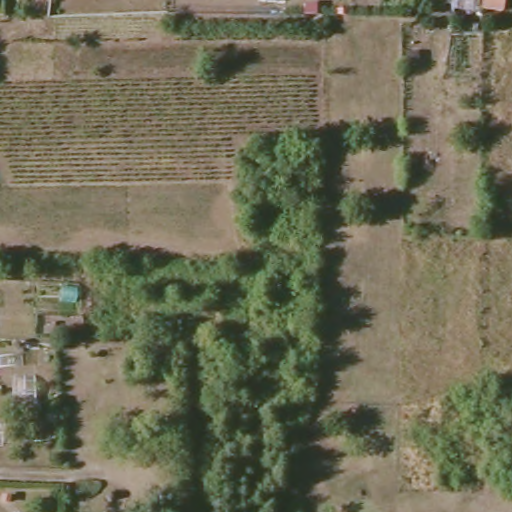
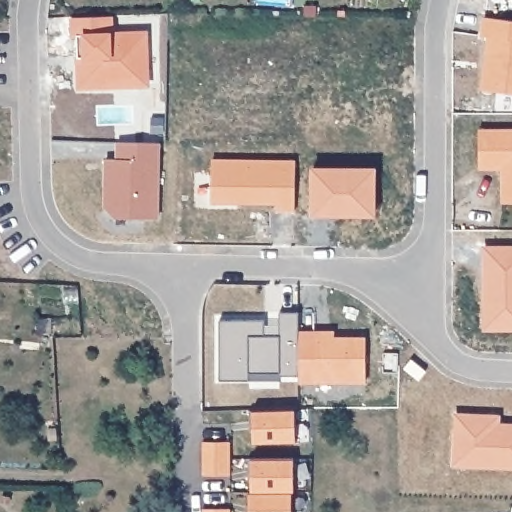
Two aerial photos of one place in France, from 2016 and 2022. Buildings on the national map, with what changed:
demolished [(505,18),(453,14),(454,0),(505,0),(505,18)]
new [(115,85),(79,85),(78,34),(74,34),(74,15),(113,15),(113,32),(148,32),(148,72),(148,84),(115,85)]
new [(477,16),(512,20),(512,93),(476,89),(478,69),(483,69),(484,62),(479,61),(482,36),(475,35),(477,16)]
new [(512,131),(512,203),(506,203),(505,182),(510,177),(510,167),(481,169),(480,131),(512,131)]
new [(107,157),(117,157),(119,141),(160,142),(158,217),(117,217),(109,207),(109,177),(106,177),(107,157)]
new [(214,160),(297,162),(297,211),(278,210),(278,202),(213,201),(214,160)]
new [(315,169),(377,170),(375,216),(315,215),(315,169)]
new [(480,293),(487,293),(487,265),(480,265),(480,248),(512,249),(512,330),(479,330),(480,293)]
new [(220,320),(265,320),(265,336),(280,336),(280,312),(300,312),(300,332),(300,376),(280,376),(280,374),(250,374),(250,378),(220,378),(220,320)]
new [(300,376),(300,332),(319,333),(319,339),(367,339),(366,382),(300,382),(300,376)]
new [(412,350),(426,362),(418,371),(405,357),(412,350)]
new [(250,410),(295,410),(295,443),(253,444),(253,431),(250,431),(250,410)]
new [(455,466),(457,415),(490,417),(500,417),(499,426),(512,426),(512,468),(455,466)]
new [(202,443),(229,443),(229,460),(229,477),(202,476),(202,460),(202,443)]
new [(249,460),(295,460),(295,493),(293,493),(252,493),(252,481),(249,481),(249,460)]
new [(251,505),(251,493),(252,493),(293,493),(293,512),(247,512),(247,505),(251,505)]
new [(229,509),(229,512),(202,512),(202,509),(229,509)]

